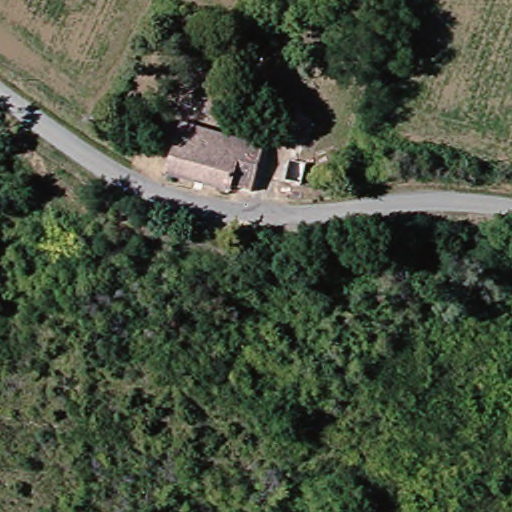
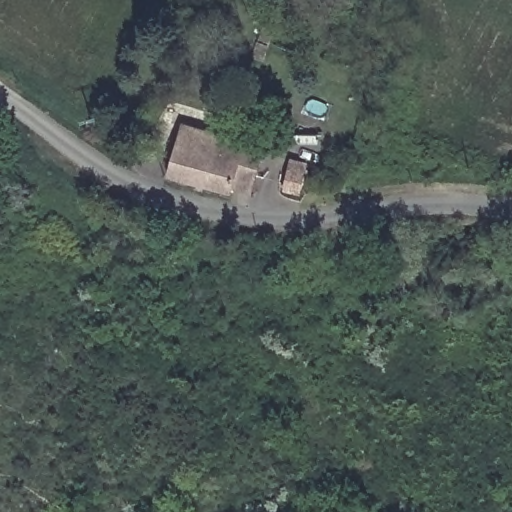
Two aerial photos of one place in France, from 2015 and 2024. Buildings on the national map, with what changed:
unchanged [(174,167),(177,157),(166,154),(169,139),(180,140),(189,121),(270,148),(257,189),(253,199),(172,178),(174,167)]
unchanged [(309,190),(305,208),(289,204),(292,187),(309,190)]

